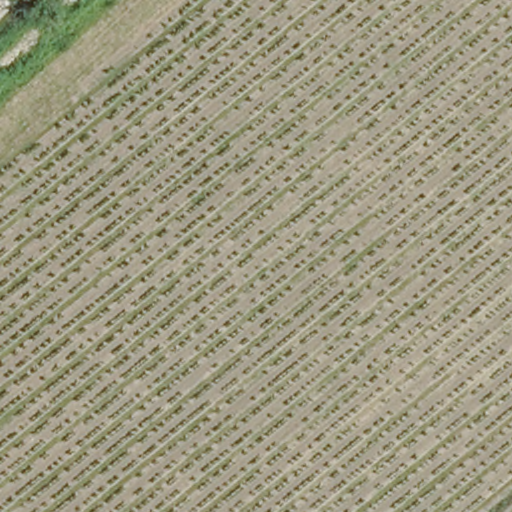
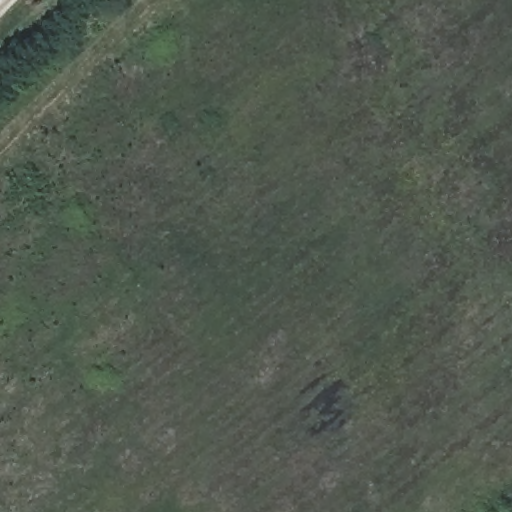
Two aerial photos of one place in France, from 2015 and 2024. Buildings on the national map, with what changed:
[]

